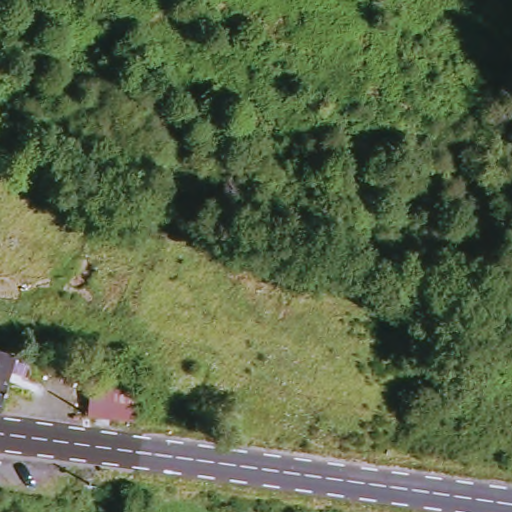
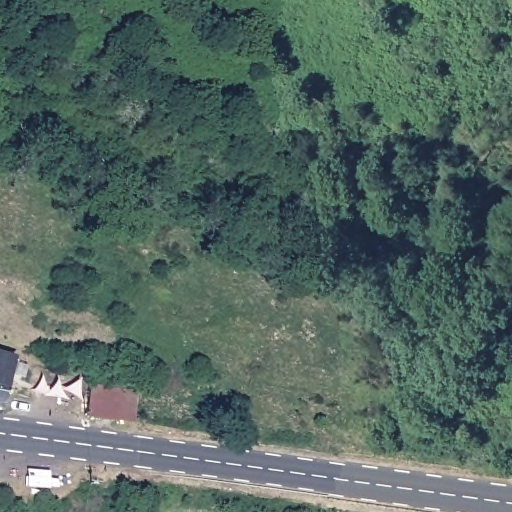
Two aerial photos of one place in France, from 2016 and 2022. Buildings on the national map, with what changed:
unchanged [(10,361),(5,385),(0,405),(0,359),(10,361)]
unchanged [(90,413),(92,388),(135,393),(134,418),(90,413)]

